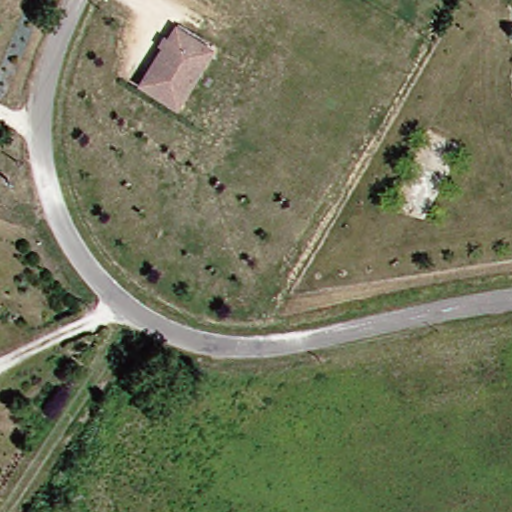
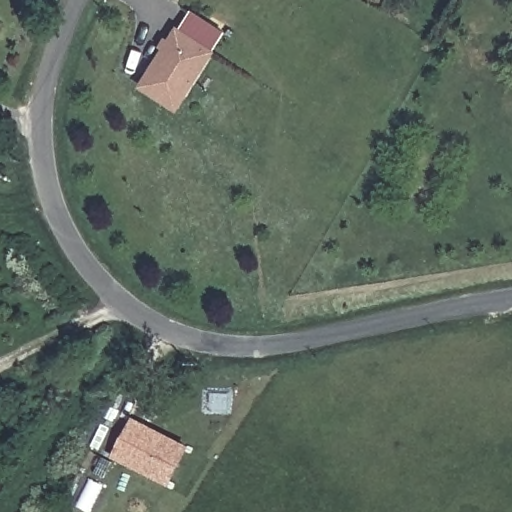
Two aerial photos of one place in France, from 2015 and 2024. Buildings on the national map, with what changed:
unchanged [(145,81),(182,24),(217,48),(180,104),(145,81)]
new [(170,486),(112,457),(132,417),(190,447),(170,486)]

